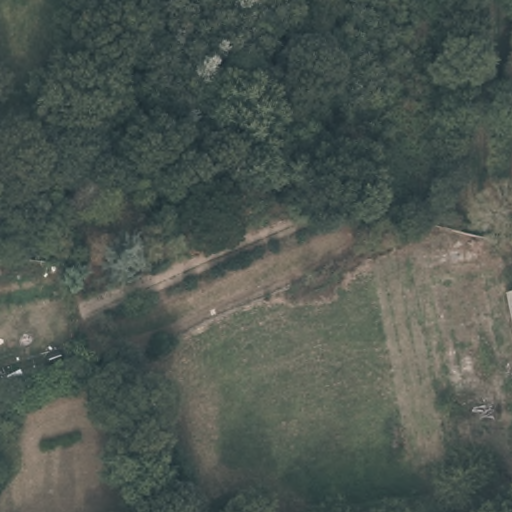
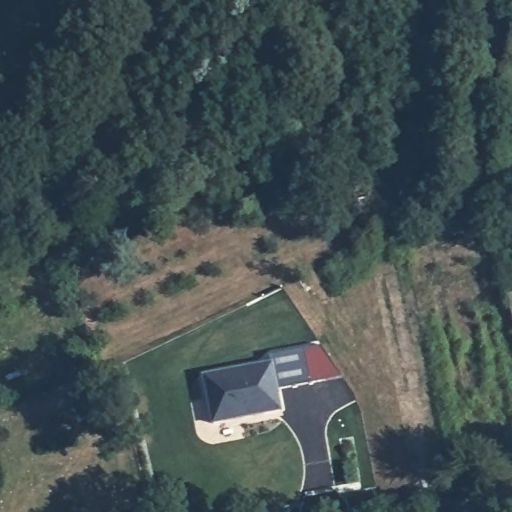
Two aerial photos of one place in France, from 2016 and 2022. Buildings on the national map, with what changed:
unchanged [(504,300),(512,298),(512,341),(504,300)]
new [(212,424),(203,374),(271,361),(270,355),(305,349),(311,382),(279,389),(284,411),(212,424)]

